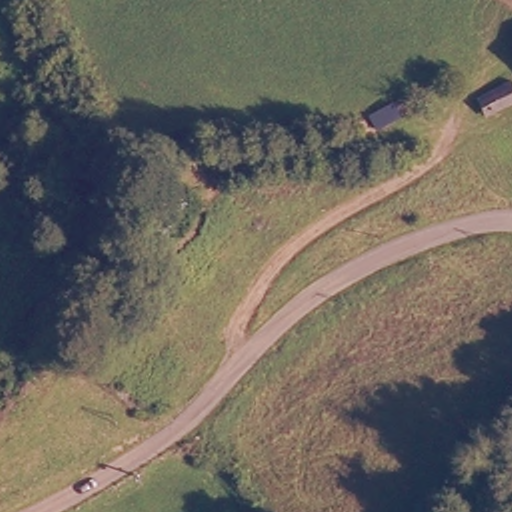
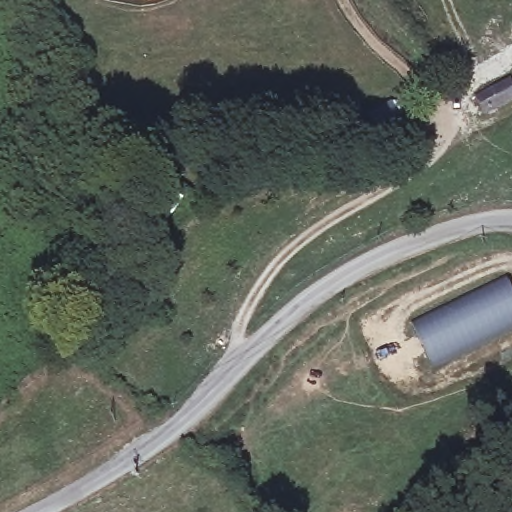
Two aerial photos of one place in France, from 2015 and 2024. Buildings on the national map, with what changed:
unchanged [(510,100),(489,107),(482,87),(502,80),(510,100)]
new [(512,329),(432,366),(411,322),(508,277),(512,286),(512,329)]

